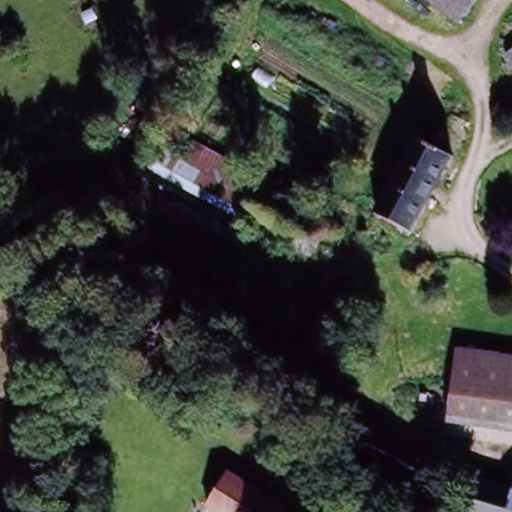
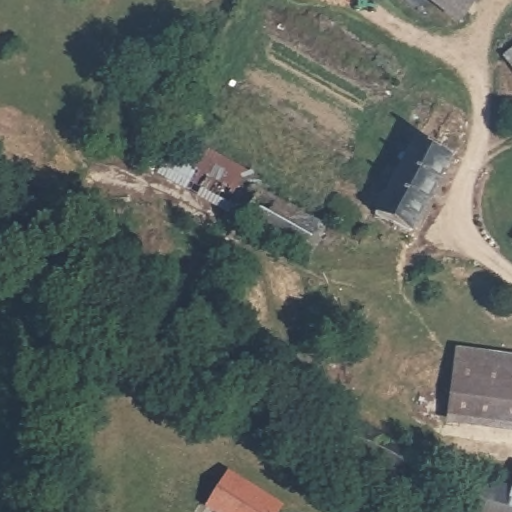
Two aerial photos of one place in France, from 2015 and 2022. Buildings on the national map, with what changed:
unchanged [(461,29),(423,0),(484,0),(461,29)]
unchanged [(512,50),(512,72),(501,59),(512,50)]
unchanged [(167,128),(260,176),(250,195),(327,236),(312,260),(146,169),(167,128)]
unchanged [(375,212),(413,138),(453,156),(412,234),(375,212)]
unchanged [(456,356),(512,361),(512,429),(452,424),(456,356)]
unchanged [(353,436),(335,425),(344,407),(435,456),(410,499),(384,488),(387,481),(344,453),(353,436)]
unchanged [(287,511),(287,512),(223,512),(207,498),(228,467),(287,511)]
unchanged [(487,484),(512,491),(512,512),(457,512),(475,478),(487,484)]

